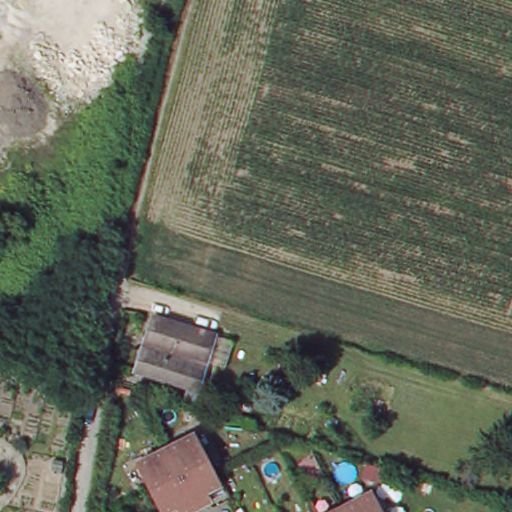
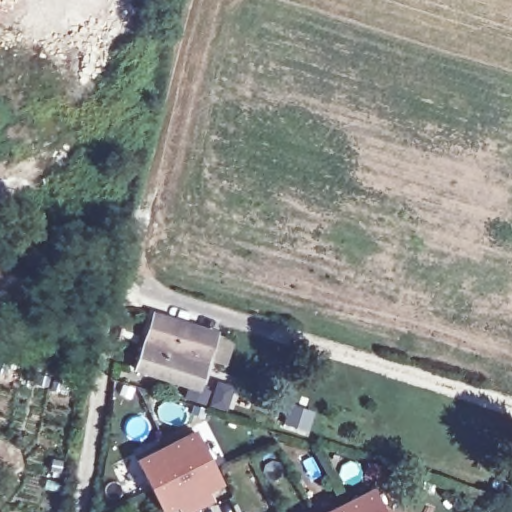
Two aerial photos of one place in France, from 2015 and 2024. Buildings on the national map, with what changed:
unchanged [(199,385),(136,364),(153,312),(217,333),(199,385)]
unchanged [(144,505),(125,463),(184,435),(203,474),(209,486),(194,495),(198,503),(181,512),(167,512),(166,509),(160,512),(148,512),(144,505)]
unchanged [(344,508),(377,492),(387,512),(335,512),(344,508)]

